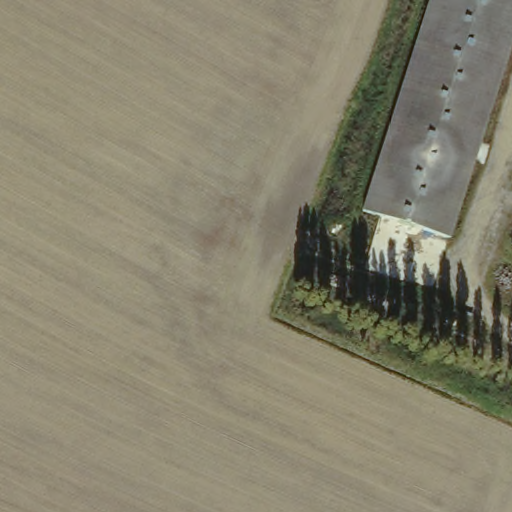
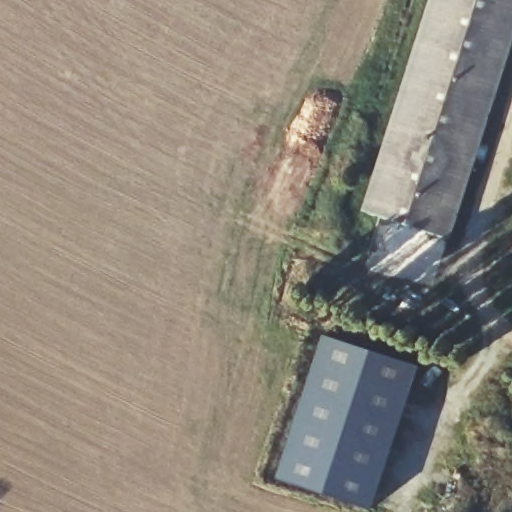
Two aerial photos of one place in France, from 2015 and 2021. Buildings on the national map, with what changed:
unchanged [(428,0),(512,0),(512,38),(465,181),(380,141),(428,0)]
unchanged [(443,246),(355,216),(380,141),(465,181),(443,246)]
new [(323,333),(418,366),(369,508),(274,477),(323,333)]

